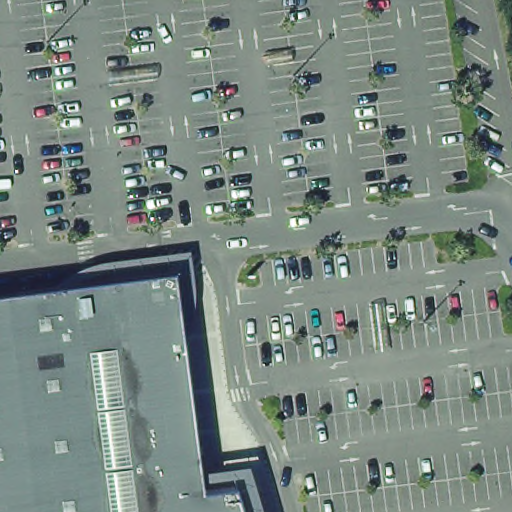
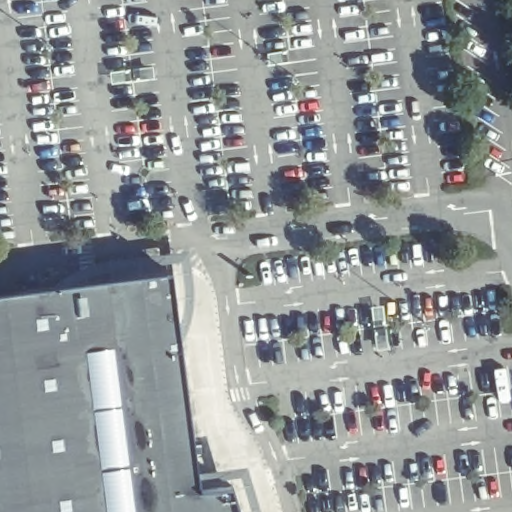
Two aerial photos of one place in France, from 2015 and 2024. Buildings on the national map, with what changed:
unchanged [(210,489),(237,487),(243,486),(244,489),(245,490),(245,491),(245,492),(245,493),(246,494),(247,495),(247,497),(247,498),(247,499),(248,500),(248,501),(248,502),(249,504),(249,505),(250,506),(250,507),(250,508),(250,509),(251,511),(252,512),(0,512),(0,295),(182,271),(210,489)]

